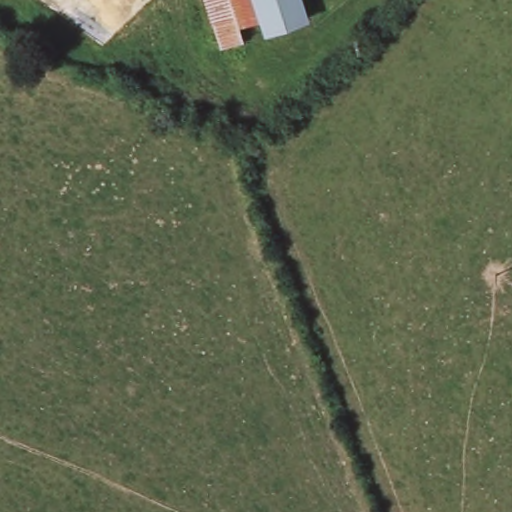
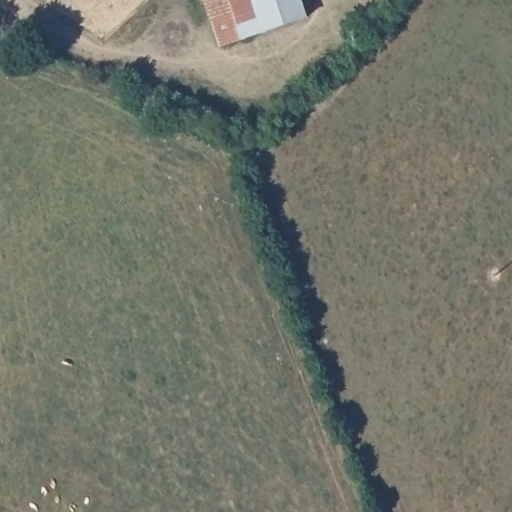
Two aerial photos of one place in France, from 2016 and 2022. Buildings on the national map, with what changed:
unchanged [(209,0),(303,0),(308,19),(225,40),(219,42),(210,2),(209,0)]

